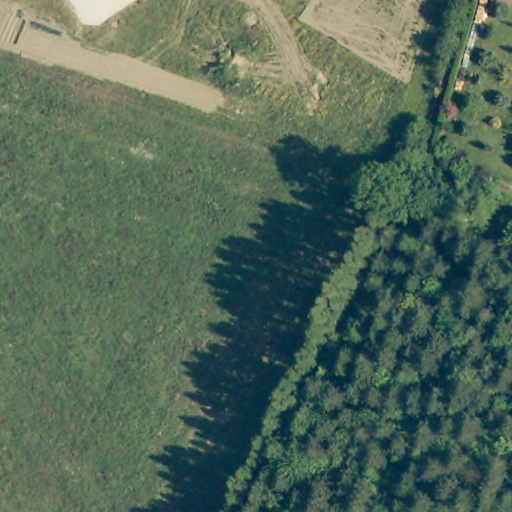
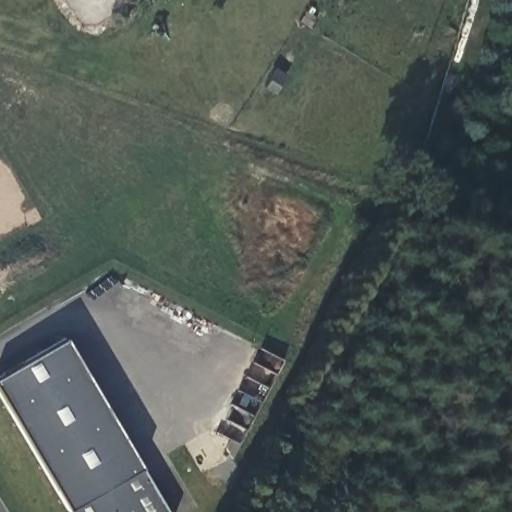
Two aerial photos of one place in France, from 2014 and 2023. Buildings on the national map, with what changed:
new [(168,512),(71,512),(0,392),(0,377),(64,338),(168,512)]

